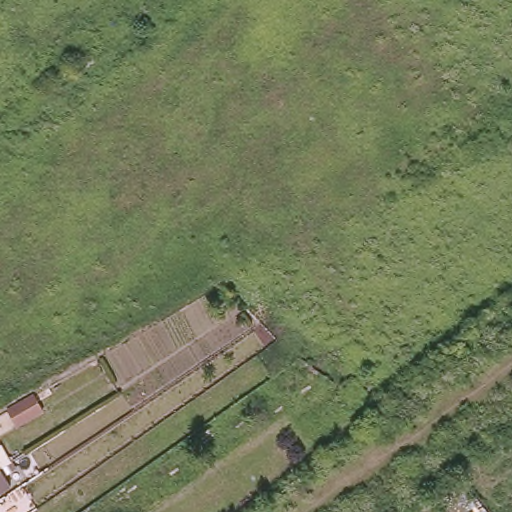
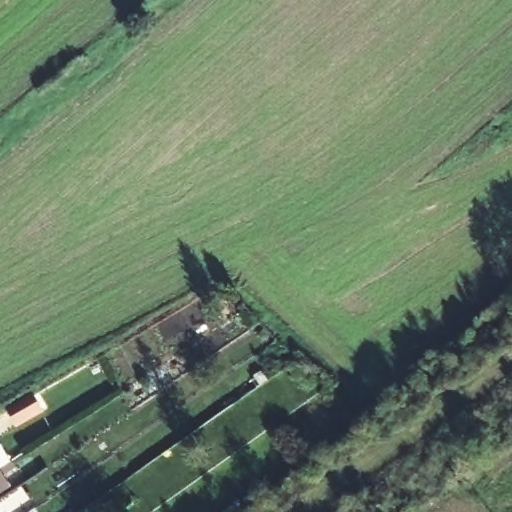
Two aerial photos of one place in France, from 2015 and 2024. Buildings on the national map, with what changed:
unchanged [(32,402),(42,418),(15,434),(5,418),(32,402)]
unchanged [(0,469),(0,459),(5,466),(0,469)]
unchanged [(0,495),(0,475),(9,489),(0,495)]

